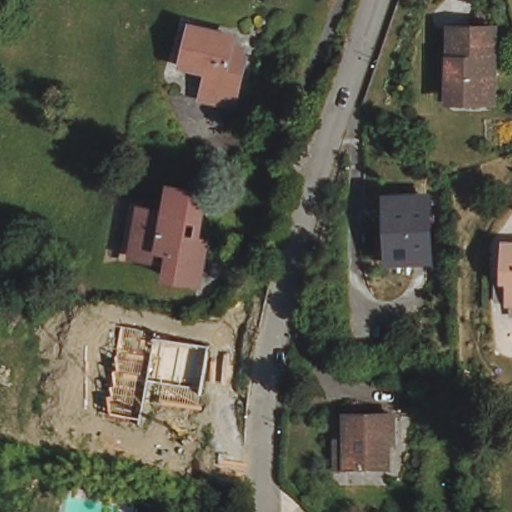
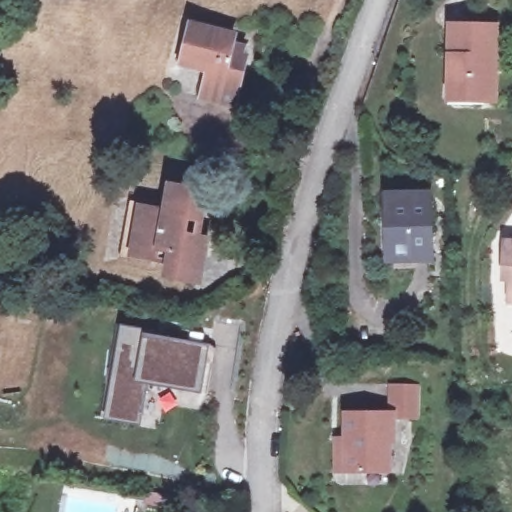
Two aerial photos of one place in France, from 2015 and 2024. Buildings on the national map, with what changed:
unchanged [(187,22),(222,31),(223,26),(233,29),(230,50),(242,51),(231,106),(195,98),(200,66),(178,60),(187,22)]
unchanged [(495,25),(498,97),(446,100),(442,27),(495,25)]
unchanged [(166,208),(172,185),(206,192),(197,234),(211,239),(201,283),(170,277),(173,260),(138,252),(148,202),(166,208)]
unchanged [(426,202),(425,257),(385,256),(385,201),(426,202)]
unchanged [(510,282),(505,282),(506,243),(512,243),(512,303),(511,302),(510,282)]
new [(141,426),(105,420),(120,326),(152,330),(150,335),(207,346),(200,393),(146,385),(141,426)]
unchanged [(391,416),(388,470),(339,466),(342,412),(391,416)]
demolished [(144,478),(146,479),(170,483),(165,501),(141,495),(142,490),(144,478)]

